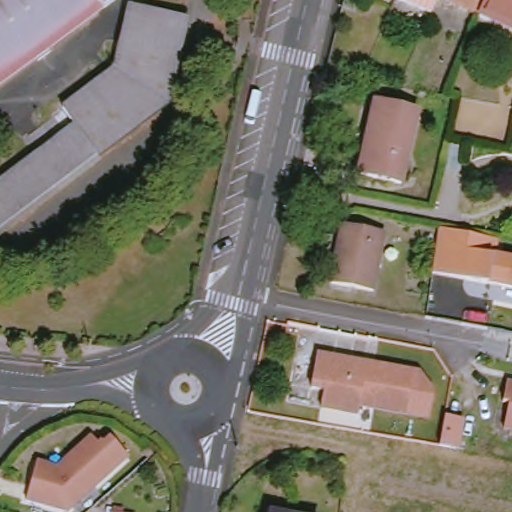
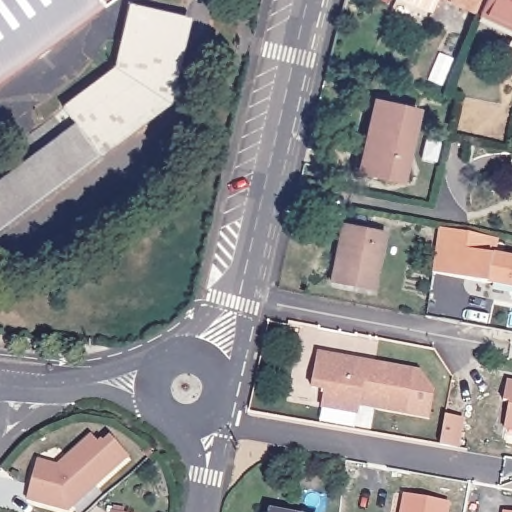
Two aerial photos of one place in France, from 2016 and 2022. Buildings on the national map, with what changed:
unchanged [(107,8),(0,88),(0,0),(101,0),(107,8)]
unchanged [(363,1),(360,0),(364,0),(363,1)]
unchanged [(438,15),(409,0),(445,0),(438,15)]
unchanged [(485,14),(453,0),(491,0),(485,14)]
unchanged [(512,26),(485,14),(491,0),(512,0),(512,26)]
unchanged [(45,155),(35,141),(74,113),(72,111),(121,70),(117,64),(120,62),(123,66),(129,43),(117,41),(125,6),(140,8),(140,5),(194,18),(174,103),(0,234),(0,191),(45,155)]
unchanged [(367,142),(377,100),(423,111),(406,183),(370,175),(360,172),(367,142)]
unchanged [(495,256),(512,260),(512,288),(432,270),(442,226),(498,238),(495,256)]
unchanged [(340,286),(350,228),(390,235),(380,293),(340,286)]
unchanged [(365,404),(363,413),(326,406),(329,388),(316,386),(322,353),(367,361),(370,369),(377,371),(379,363),(420,370),(435,390),(429,420),(364,407),(365,404)]
unchanged [(512,388),(512,406),(508,405),(512,388)]
unchanged [(462,419),(457,447),(440,444),(445,416),(462,419)]
unchanged [(512,418),(512,432),(510,431),(512,418)]
unchanged [(64,477),(78,465),(76,463),(100,441),(107,449),(110,446),(112,448),(120,442),(137,462),(80,512),(63,512),(35,503),(45,471),(64,477)]
new [(447,512),(401,512),(404,494),(449,502),(447,512)]

